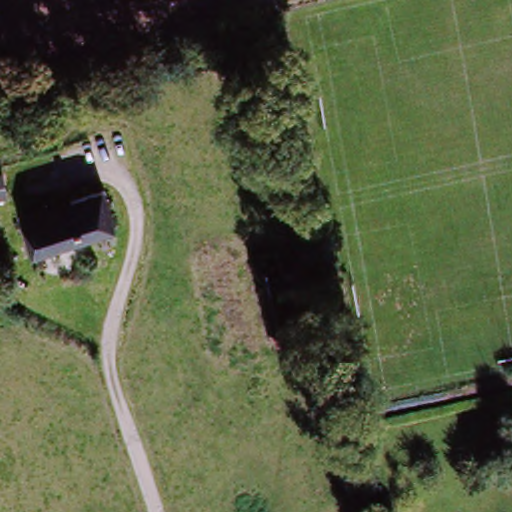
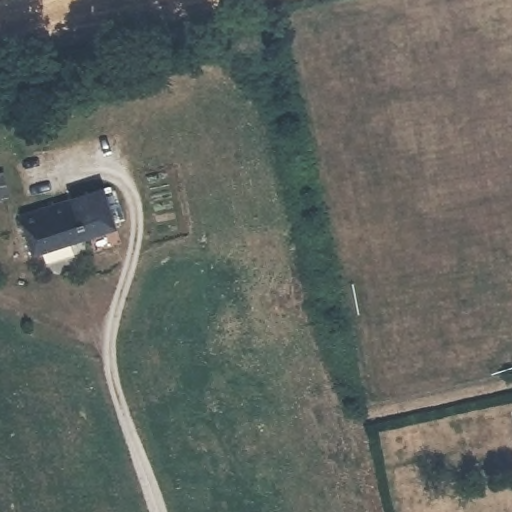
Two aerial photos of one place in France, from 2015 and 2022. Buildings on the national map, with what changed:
unchanged [(104,204),(114,237),(33,258),(25,224),(104,204)]
unchanged [(280,263),(297,340),(273,347),(255,269),(280,263)]

